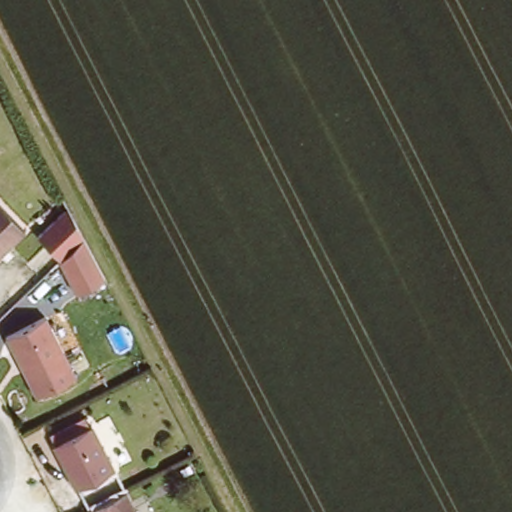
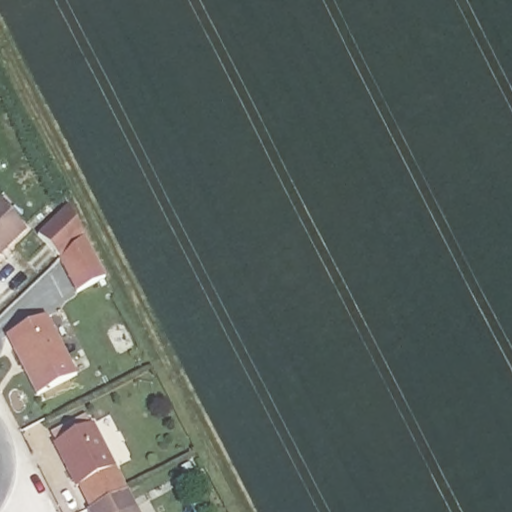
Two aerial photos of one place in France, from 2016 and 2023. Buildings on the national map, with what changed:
unchanged [(68,207),(105,279),(77,294),(60,257),(38,237),(68,207)]
unchanged [(20,228),(0,248),(0,208),(20,228)]
unchanged [(75,375),(37,395),(5,335),(44,315),(75,375)]
unchanged [(55,452),(50,443),(59,438),(79,427),(89,421),(94,432),(117,475),(77,495),(55,452)]
unchanged [(196,462),(182,469),(175,457),(189,450),(196,462)]
unchanged [(90,503),(128,483),(144,512),(95,512),(90,503)]

